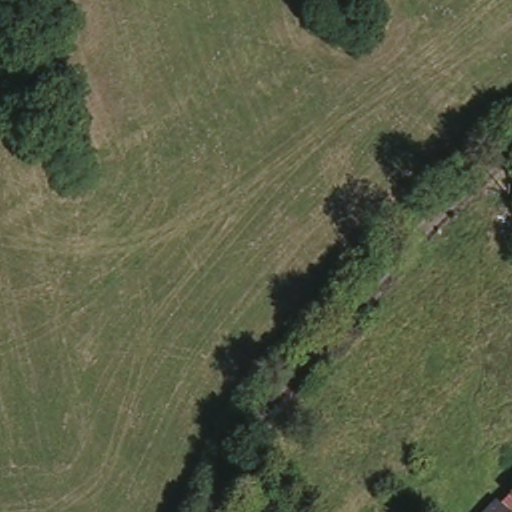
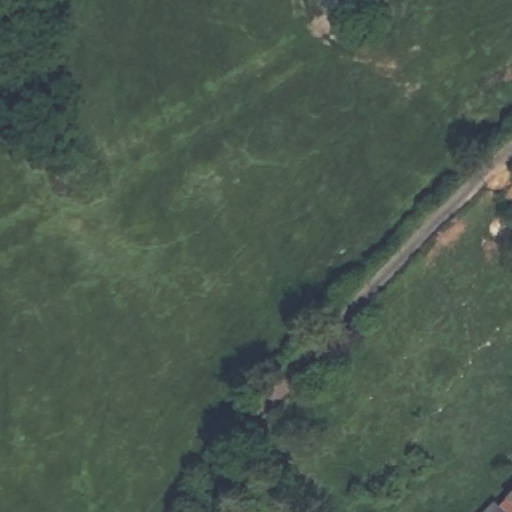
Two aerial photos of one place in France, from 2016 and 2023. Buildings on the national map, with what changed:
unchanged [(487,512),(512,490),(512,512),(487,512)]

